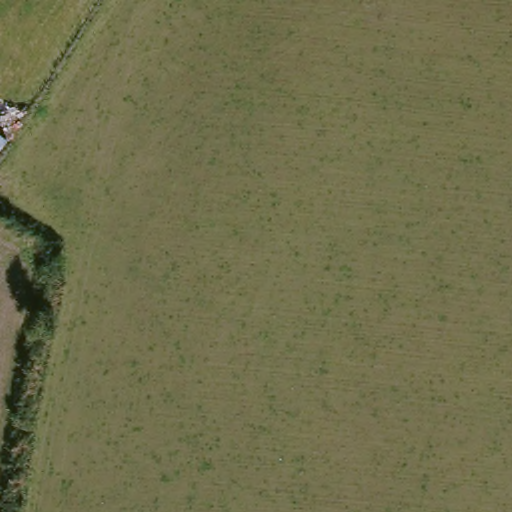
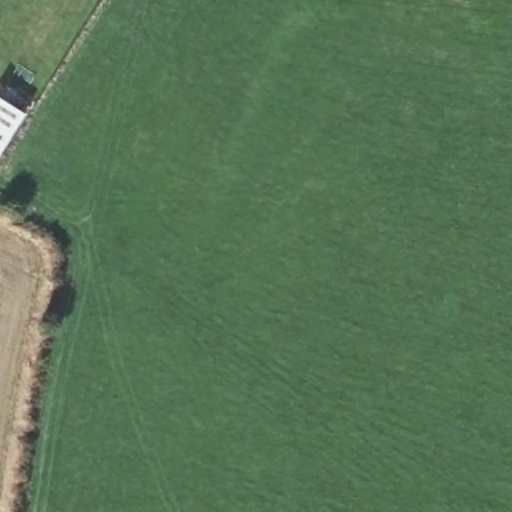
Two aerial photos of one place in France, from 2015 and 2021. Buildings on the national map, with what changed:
new [(26,115),(0,157),(0,99),(26,115)]

